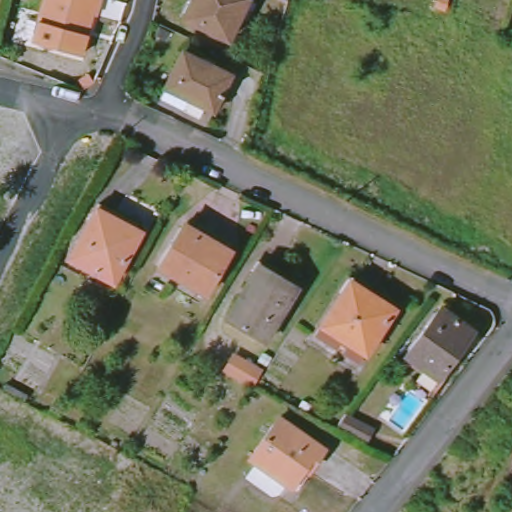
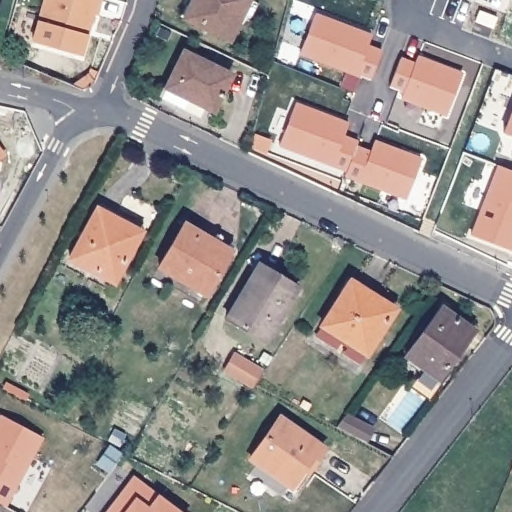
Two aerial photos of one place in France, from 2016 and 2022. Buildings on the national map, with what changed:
unchanged [(93,11),(82,52),(34,39),(45,0),(100,0),(97,12),(93,11)]
unchanged [(196,4),(191,2),(192,0),(246,0),(228,40),(188,21),(196,4)]
new [(371,80),(299,52),(314,14),(371,36),(367,46),(381,51),(371,80)]
unchanged [(166,87),(183,52),(230,76),(213,111),(166,87)]
new [(446,115),(401,97),(403,92),(389,86),(400,59),(414,64),(417,57),(461,74),(446,115)]
new [(346,170),(279,144),(294,104),(348,124),(343,136),(357,142),(346,170)]
new [(503,132),(512,108),(512,136),(503,132)]
new [(369,152),(374,141),(420,159),(406,197),(345,175),(356,147),(369,152)]
new [(0,172),(0,151),(3,156),(0,172)]
new [(512,171),(512,244),(510,250),(471,235),(498,166),(512,171)]
unchanged [(70,259),(96,211),(114,220),(109,230),(134,244),(113,282),(70,259)]
unchanged [(158,267),(181,229),(209,245),(211,242),(229,252),(206,295),(158,267)]
unchanged [(226,318),(256,268),(294,291),(264,342),(226,318)]
unchanged [(322,326),(347,287),(374,303),(376,299),(393,310),(366,353),(322,326)]
unchanged [(406,356),(441,308),(472,330),(437,379),(406,356)]
unchanged [(269,371),(257,390),(226,374),(238,354),(269,371)]
new [(43,436),(5,505),(0,502),(0,417),(1,415),(43,436)]
unchanged [(317,458),(312,456),(290,487),(250,459),(279,418),(323,448),(317,458)]
new [(134,477),(181,512),(107,512),(134,477)]

